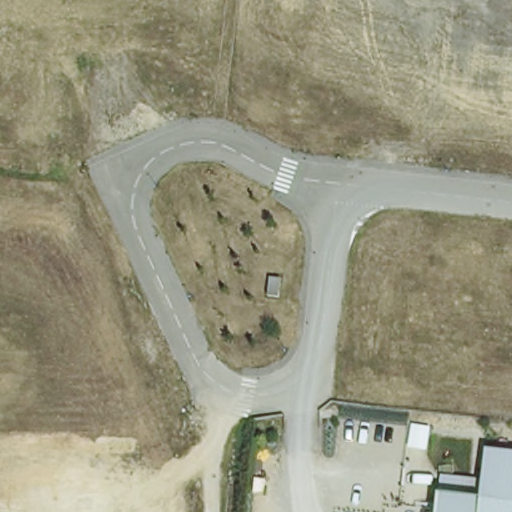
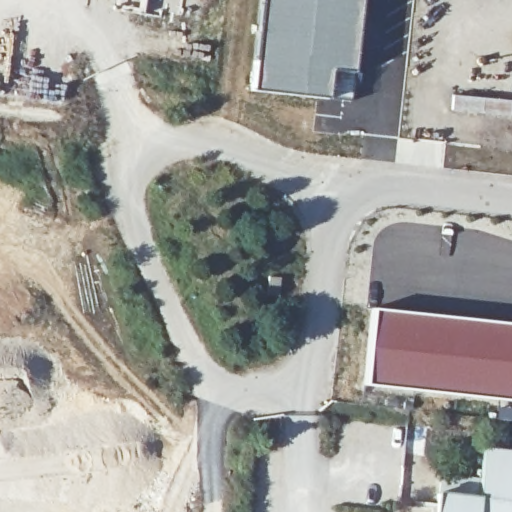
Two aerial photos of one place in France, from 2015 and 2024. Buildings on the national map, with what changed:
new [(161,11),(162,0),(183,0),(181,14),(161,11)]
new [(361,0),(354,72),(331,70),(329,101),(248,90),(259,0),(361,0)]
new [(369,307),(512,321),(512,404),(504,403),(361,385),(369,307)]
unchanged [(478,492),(484,443),(512,447),(512,512),(437,512),(439,488),(478,492)]

